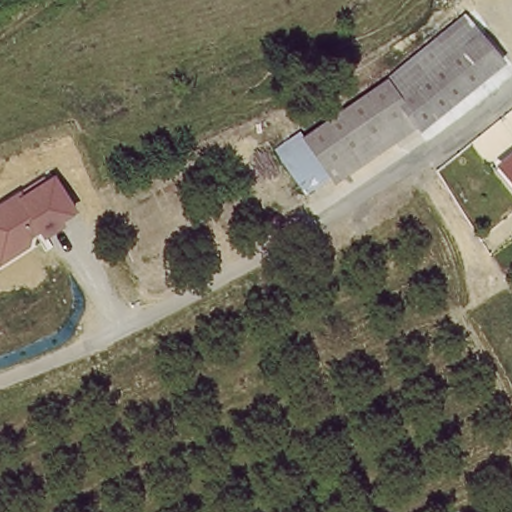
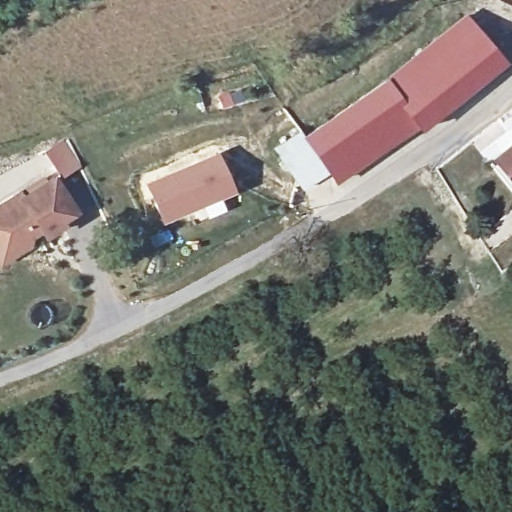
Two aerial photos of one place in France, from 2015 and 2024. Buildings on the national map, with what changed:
unchanged [(385,78),(401,95),(462,39),(476,27),(503,55),(493,63),(423,127),(410,112),(331,176),(303,146),(385,78)]
unchanged [(331,176),(309,194),(281,164),(303,146),(331,176)]
new [(68,149),(78,164),(60,176),(44,152),(68,149)]
new [(163,223),(146,184),(218,152),(233,192),(163,223)]
unchanged [(502,167),(512,157),(512,178),(502,167)]
unchanged [(28,193),(57,176),(79,211),(65,217),(70,223),(43,240),(40,234),(33,239),(36,245),(0,266),(0,205),(24,189),(28,193)]

